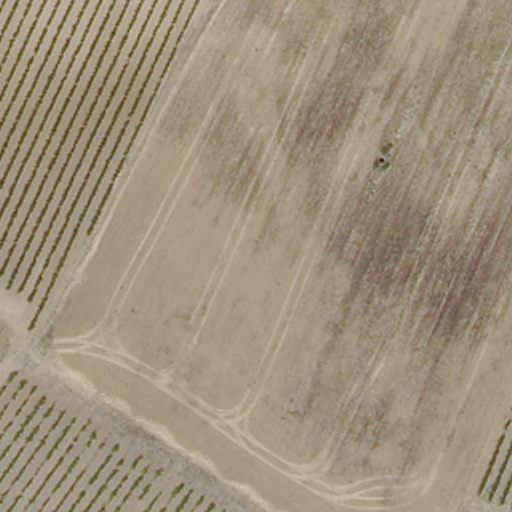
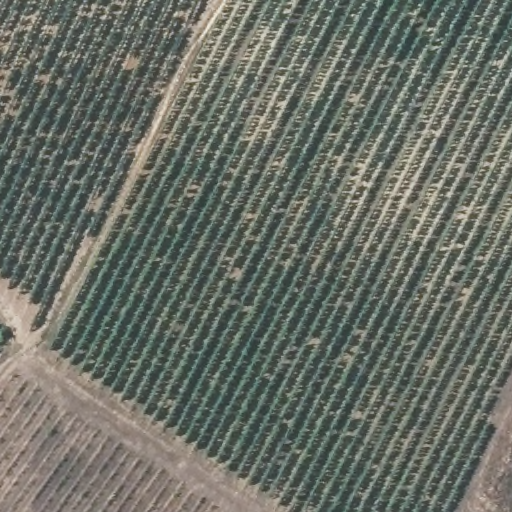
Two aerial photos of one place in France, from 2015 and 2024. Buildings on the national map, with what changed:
[]

